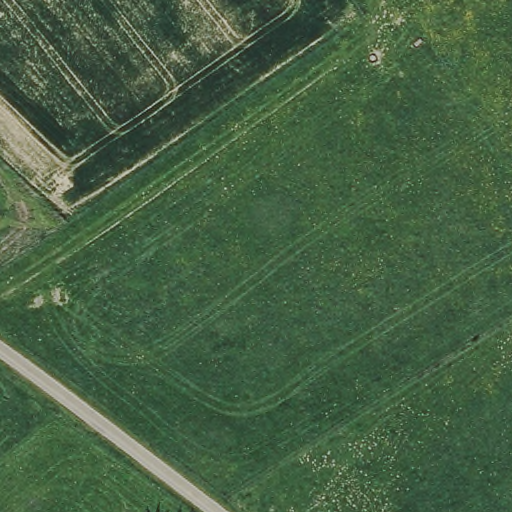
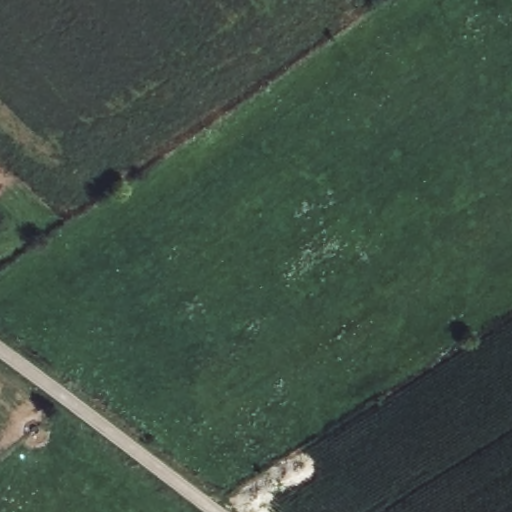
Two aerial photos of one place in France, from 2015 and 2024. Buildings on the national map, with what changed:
[]

